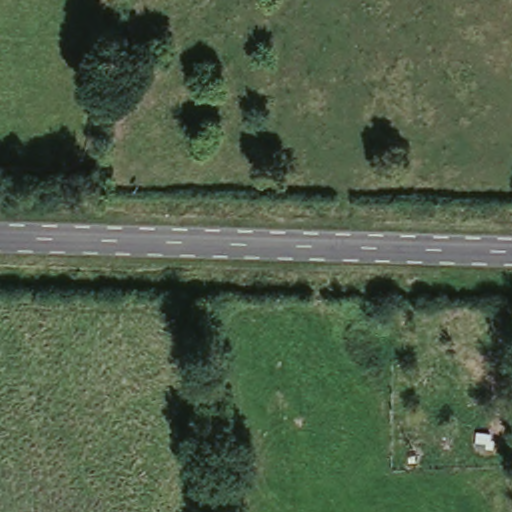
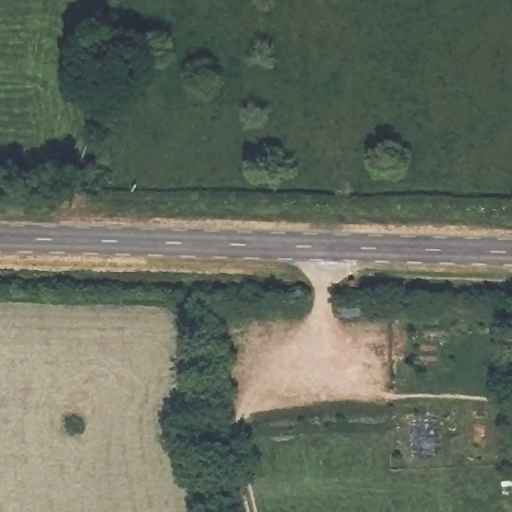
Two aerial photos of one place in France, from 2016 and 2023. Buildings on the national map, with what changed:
[]

